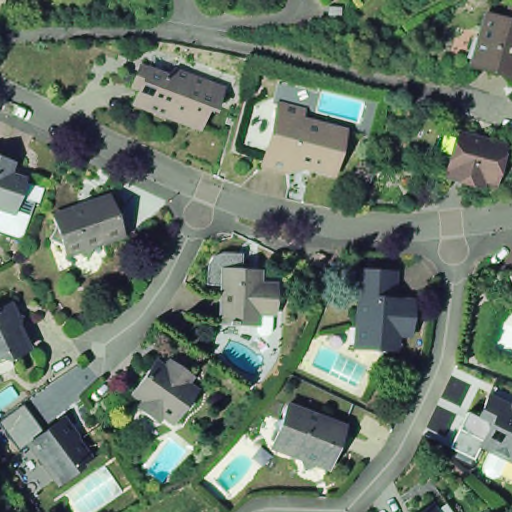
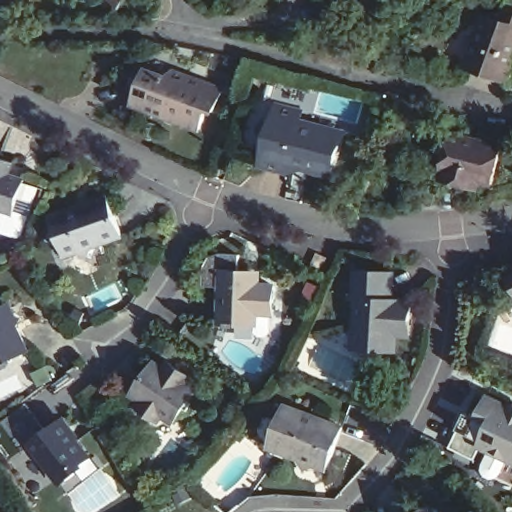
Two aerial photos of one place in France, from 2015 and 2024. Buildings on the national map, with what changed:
unchanged [(494,16),(512,23),(512,77),(477,66),(494,16)]
unchanged [(141,76),(151,68),(172,76),(181,70),(220,86),(203,127),(139,102),(145,89),(136,85),(141,76)]
unchanged [(302,111),(298,124),(320,130),(321,125),(345,131),(332,175),(289,162),(287,170),(263,164),(278,105),(302,111)]
unchanged [(445,174),(447,165),(445,166),(433,162),(437,147),(441,130),(447,127),(455,129),(503,142),(493,179),(480,175),(478,183),(464,179),(445,174)]
unchanged [(0,205),(0,154),(17,160),(13,173),(31,179),(24,196),(20,210),(13,208),(0,205)]
unchanged [(113,196),(127,235),(98,245),(91,256),(55,239),(61,226),(57,216),(113,196)]
unchanged [(312,262),(317,251),(328,256),(322,267),(312,262)]
unchanged [(271,336),(264,335),(260,331),(260,325),(248,324),(241,323),(240,325),(232,325),(233,323),(225,323),(227,285),(211,284),(212,266),(217,257),(226,254),(245,255),(244,270),(257,271),(256,278),(263,279),(263,285),(280,285),(280,302),(277,302),(276,313),(275,332),(271,336)]
unchanged [(357,327),(360,297),(355,297),(360,269),(388,271),(386,300),(411,301),(410,335),(398,334),(397,344),(380,357),(373,349),(363,349),(356,348),(357,327)]
unchanged [(9,325),(6,335),(16,354),(13,361),(5,365),(0,364),(0,323),(0,324),(9,325)]
unchanged [(154,366),(165,374),(170,365),(190,378),(185,386),(195,394),(175,424),(162,415),(156,424),(140,412),(145,404),(132,395),(154,366)]
unchanged [(511,472),(505,473),(500,471),(496,465),(497,459),(504,445),(495,441),(488,455),(463,442),(474,421),(480,408),(492,413),(502,392),(512,397),(512,472),(511,472)]
unchanged [(278,426),(286,405),(343,427),(328,468),(316,462),(304,467),(298,456),(276,450),(270,447),(278,426)]
unchanged [(66,418),(95,456),(80,467),(80,472),(71,480),(61,478),(33,442),(66,418)]
unchanged [(426,503),(440,495),(453,512),(414,512),(426,503)]

